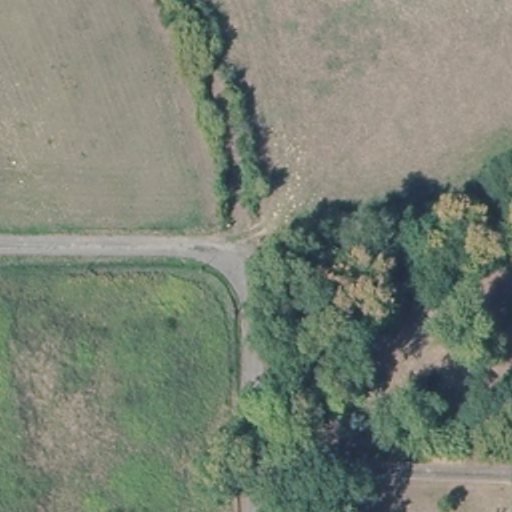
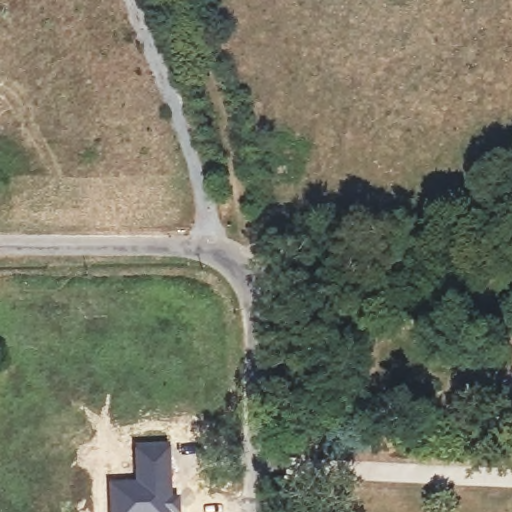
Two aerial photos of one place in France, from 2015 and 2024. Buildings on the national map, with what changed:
new [(133,479),(132,442),(168,442),(173,508),(173,512),(108,512),(106,479),(133,479)]

